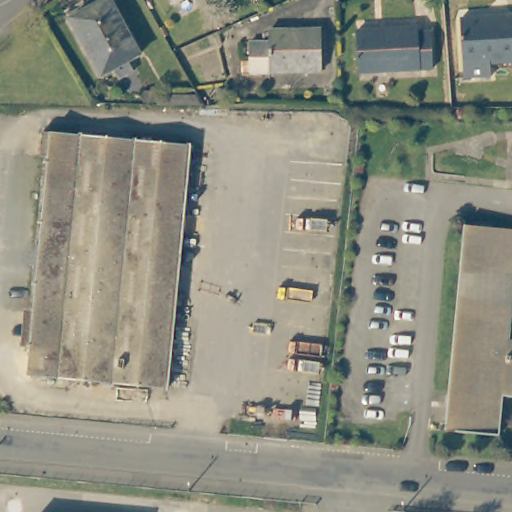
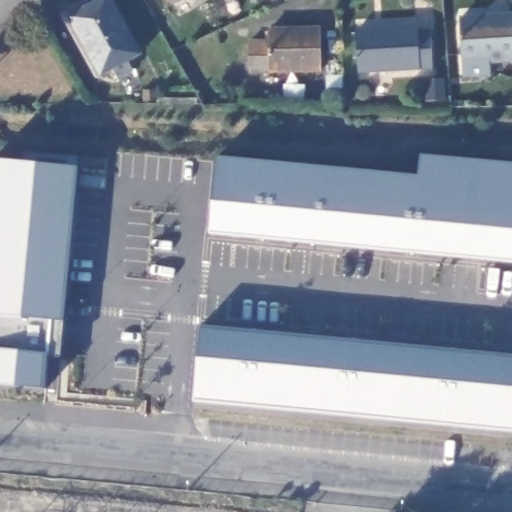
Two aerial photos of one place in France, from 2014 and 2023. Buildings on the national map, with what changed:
unchanged [(137,54),(125,60),(130,69),(116,76),(111,66),(98,72),(72,13),(98,0),(112,0),(137,54)]
unchanged [(172,4),(170,0),(180,0),(172,4)]
unchanged [(512,59),(460,62),(458,17),(512,14),(512,59)]
unchanged [(417,24),(417,30),(430,30),(430,66),(356,68),(356,26),(417,24)]
unchanged [(321,31),(321,71),(248,70),(249,43),(270,42),(270,30),(321,31)]
demolished [(29,371),(50,130),(189,142),(168,383),(29,371)]
new [(60,355),(47,355),(44,388),(0,384),(0,160),(23,161),(24,152),(78,157),(76,166),(60,355)]
new [(418,175),(420,154),(512,163),(512,261),(210,231),(217,156),(418,175)]
demolished [(501,431),(446,426),(467,222),(512,226),(512,321),(510,336),(512,337),(512,392),(505,391),(501,431)]
new [(512,356),(512,431),(194,400),(201,326),(512,356)]

